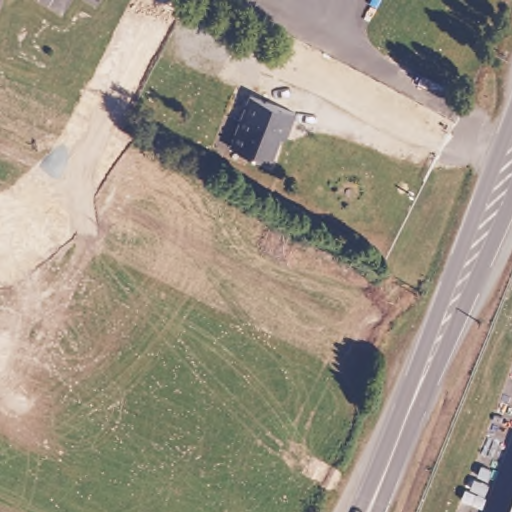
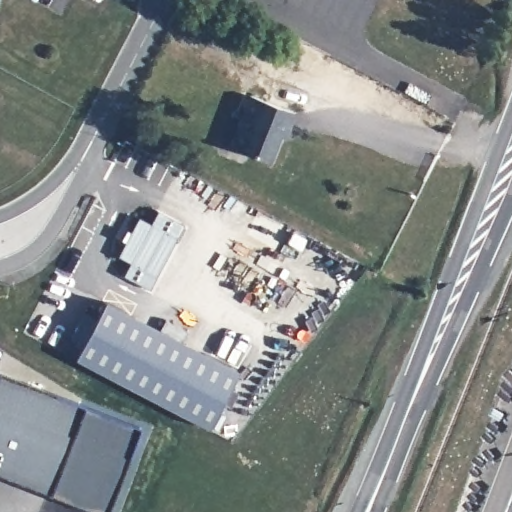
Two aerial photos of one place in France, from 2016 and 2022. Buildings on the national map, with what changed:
unchanged [(297,116),(290,131),(283,129),(267,158),(230,139),(254,93),(297,116)]
new [(137,216),(150,223),(156,210),(183,224),(149,290),(122,275),(129,262),(117,256),(137,216)]
new [(103,301),(237,370),(206,428),(72,358),(103,301)]
new [(48,493),(0,476),(0,372),(82,403),(48,493)]

